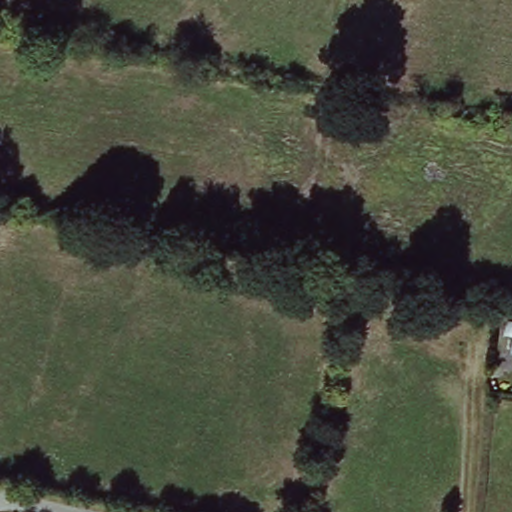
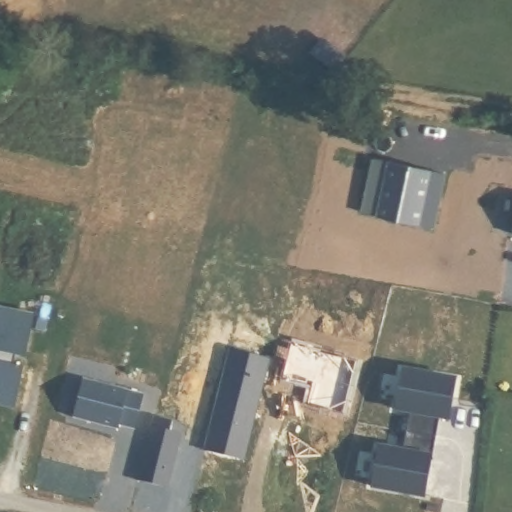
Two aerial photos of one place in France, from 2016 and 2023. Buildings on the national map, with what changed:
new [(371,159),(427,171),(445,174),(438,203),(433,231),(375,219),(360,216),(365,188),(371,159)]
new [(512,211),(512,214),(511,213),(512,211)]
new [(512,225),(512,237),(510,237),(512,225)]
new [(32,313),(24,352),(15,350),(12,363),(21,364),(13,404),(0,401),(0,307),(32,313)]
demolished [(512,337),(502,335),(505,317),(512,319),(512,337)]
new [(228,349),(268,359),(242,460),(203,450),(228,349)]
demolished [(512,352),(512,355),(511,355),(512,352)]
new [(363,479),(372,441),(397,446),(405,408),(390,405),(397,367),(459,380),(455,399),(452,398),(449,417),(435,414),(427,453),(425,452),(422,470),(424,471),(420,490),(363,479)]
new [(84,379),(144,394),(135,429),(120,425),(118,429),(73,418),(84,379)]
new [(154,414),(174,419),(171,429),(181,431),(167,486),(138,478),(154,414)]

